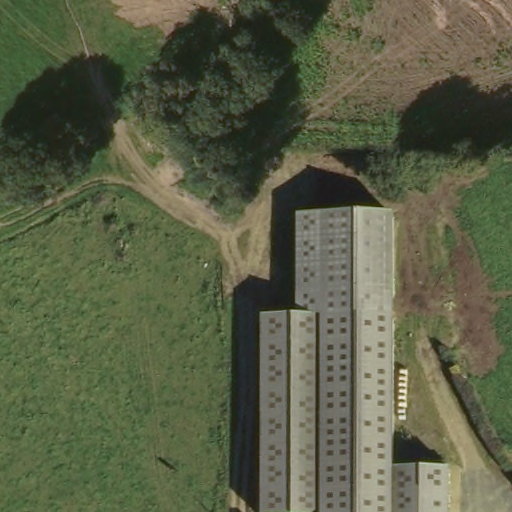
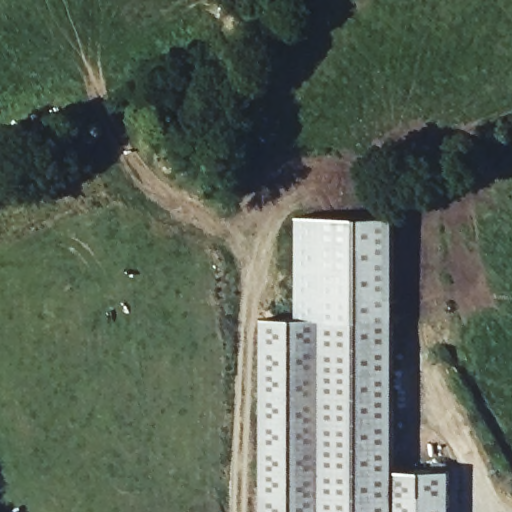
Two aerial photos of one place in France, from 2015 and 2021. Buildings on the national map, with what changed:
unchanged [(310,314),(307,217),(405,215),(406,313),(310,314)]
unchanged [(405,468),(460,466),(461,512),(272,512),(270,314),(406,313),(405,468)]

